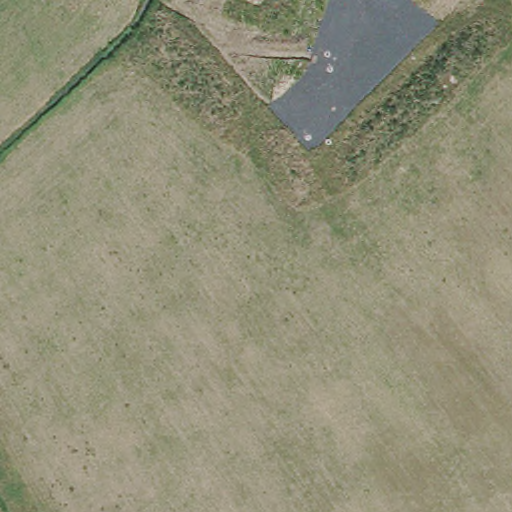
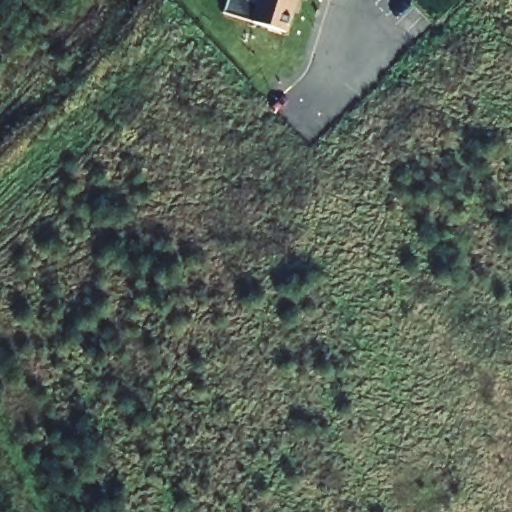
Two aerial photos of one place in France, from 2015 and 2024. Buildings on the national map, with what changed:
new [(228,0),(252,0),(260,2),(261,0),(296,0),(287,32),(224,13),(228,0)]

